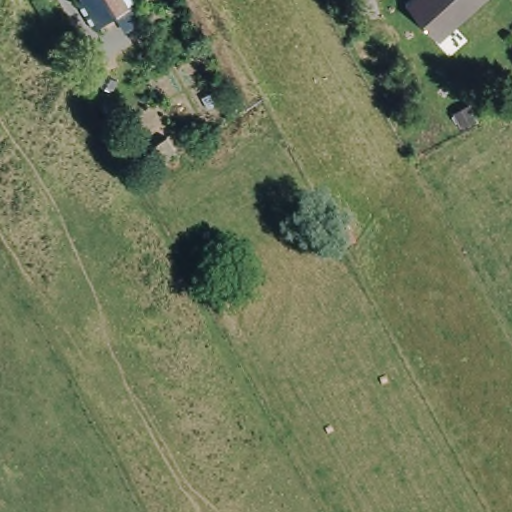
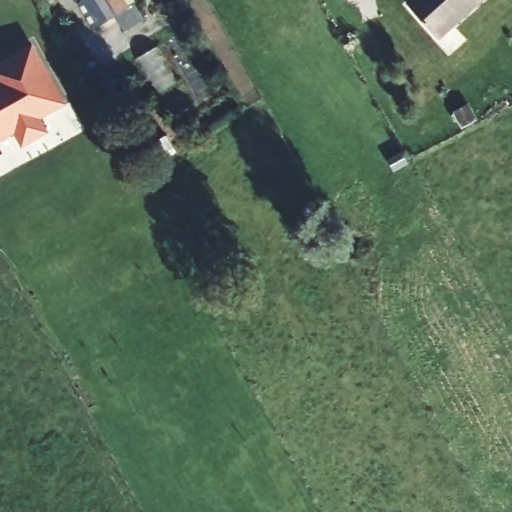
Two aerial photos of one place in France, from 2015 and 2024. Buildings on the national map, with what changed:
new [(99,31),(77,1),(77,0),(133,0),(137,5),(112,23),(99,31)]
demolished [(130,7),(117,15),(106,0),(142,0),(130,7)]
unchanged [(444,34),(412,6),(419,0),(476,0),(444,34)]
new [(68,104),(42,118),(50,132),(22,148),(14,135),(0,143),(0,61),(33,42),(68,104)]

